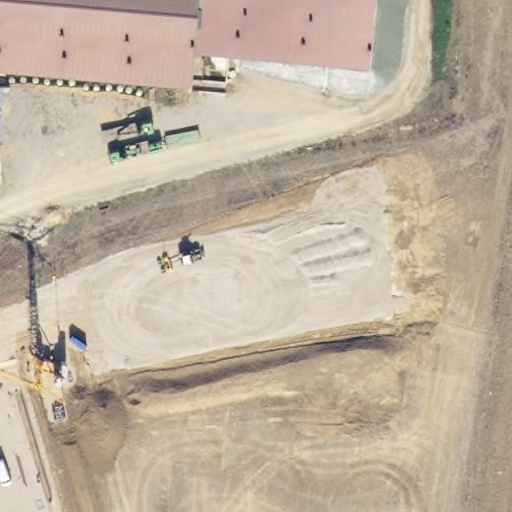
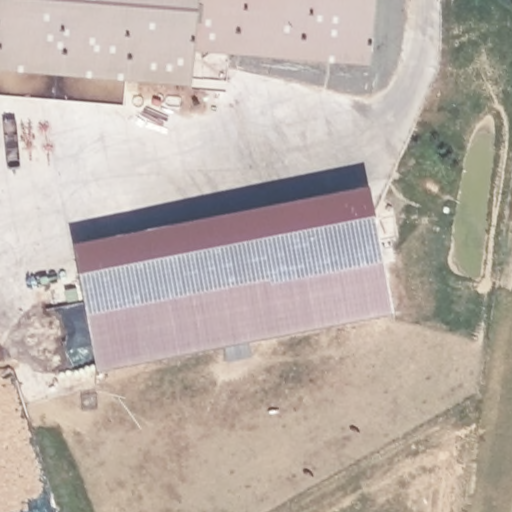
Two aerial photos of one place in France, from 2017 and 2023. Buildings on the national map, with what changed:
unchanged [(0,70),(0,0),(197,0),(190,84),(0,70)]
unchanged [(197,0),(375,0),(370,67),(193,51),(193,44),(197,0)]
new [(96,371),(73,244),(367,186),(393,312),(96,371)]

